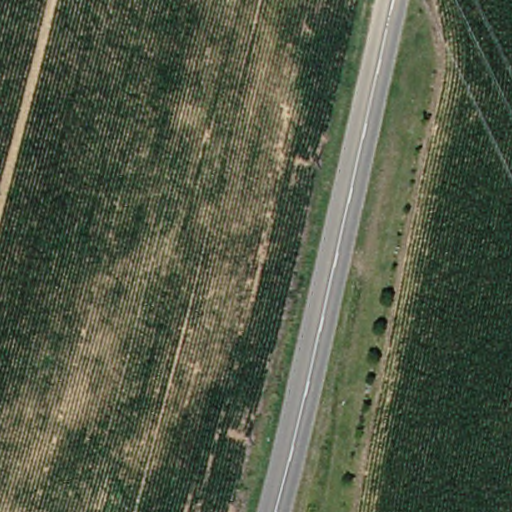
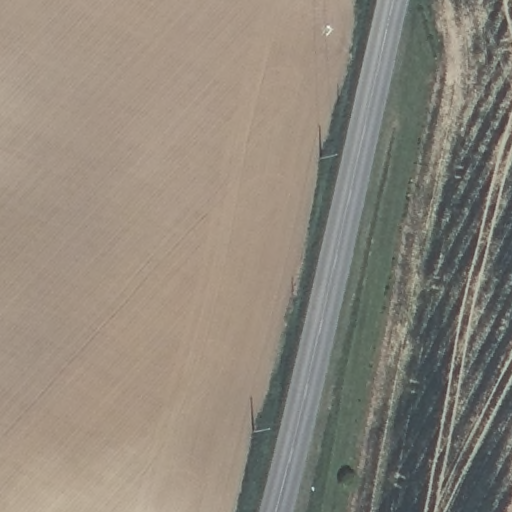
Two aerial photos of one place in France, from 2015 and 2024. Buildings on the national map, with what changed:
[]

